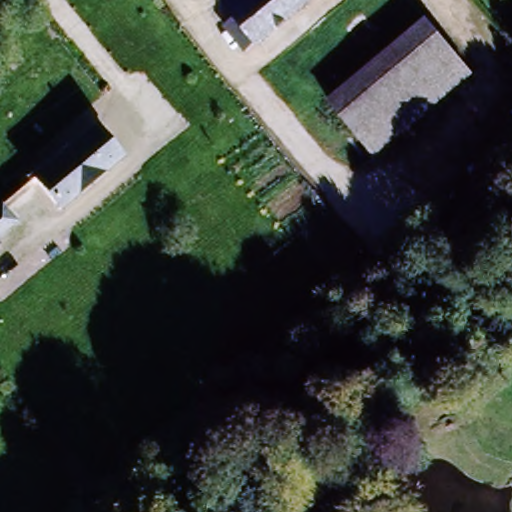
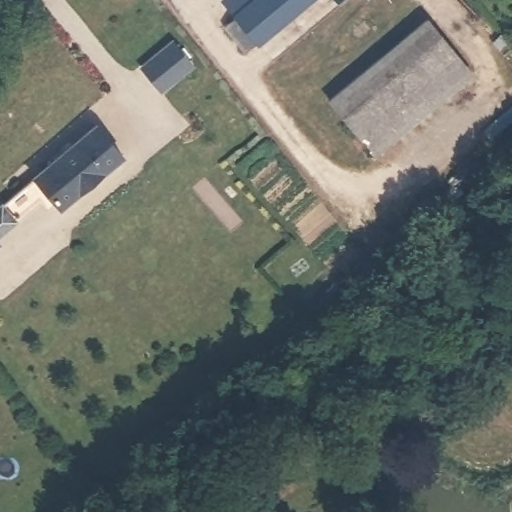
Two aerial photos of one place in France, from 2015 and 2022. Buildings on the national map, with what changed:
unchanged [(262,45),(234,13),(249,0),(315,0),(262,45)]
unchanged [(472,73),(377,157),(327,99),(425,19),(472,73)]
new [(195,69),(161,96),(140,69),(175,41),(195,69)]
unchanged [(118,154),(57,204),(31,179),(95,125),(118,154)]
unchanged [(15,221),(0,236),(0,206),(1,206),(15,221)]
unchanged [(1,245),(0,245),(0,243),(1,245)]

